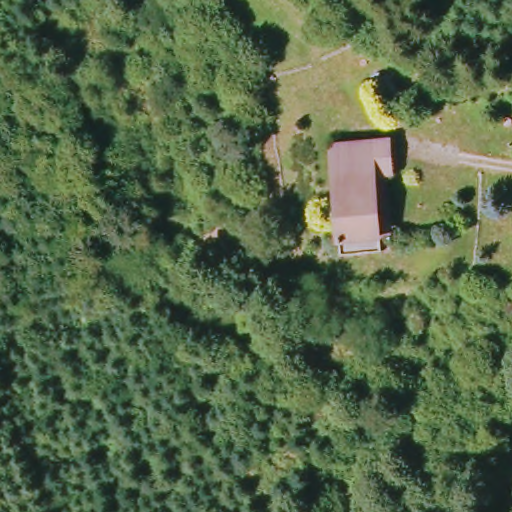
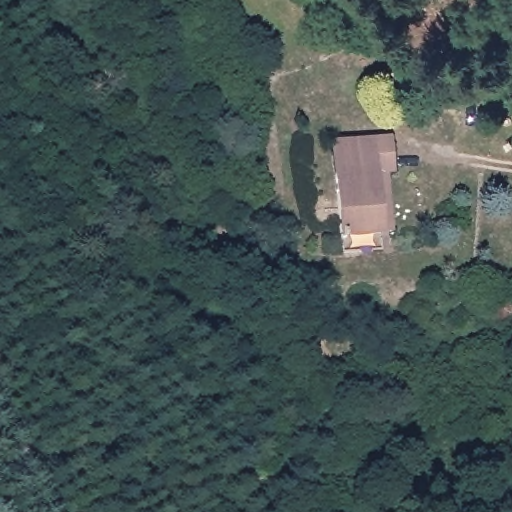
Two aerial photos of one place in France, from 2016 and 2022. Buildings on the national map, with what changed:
unchanged [(326,140),(390,135),(393,175),(376,175),(378,214),(391,220),(392,249),(378,240),(340,242),(326,140)]

